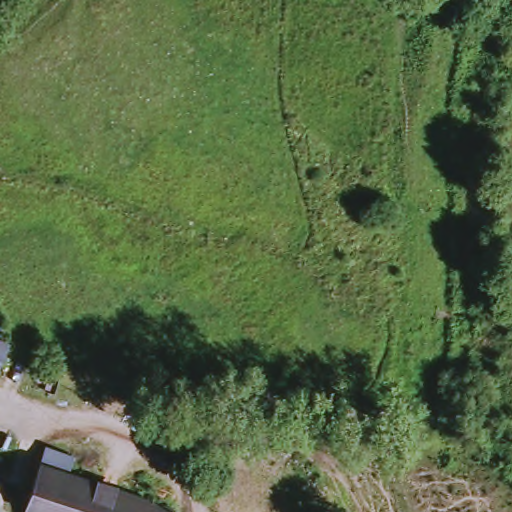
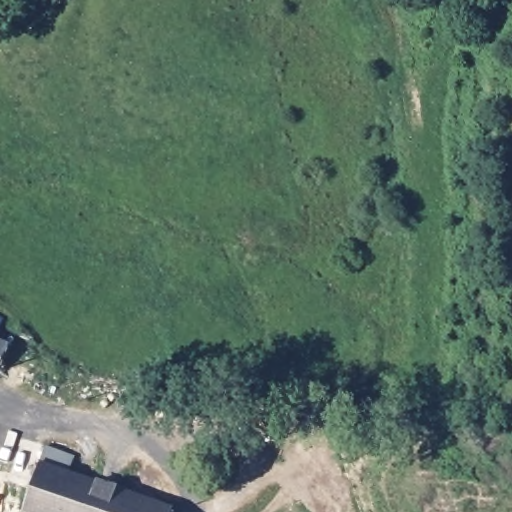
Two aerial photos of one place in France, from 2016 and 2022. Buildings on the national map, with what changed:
unchanged [(0,349),(0,337),(4,339),(0,349)]
unchanged [(0,383),(0,355),(14,361),(3,384),(0,383)]
unchanged [(40,448),(57,453),(55,464),(167,500),(163,512),(20,512),(20,511),(40,448)]

